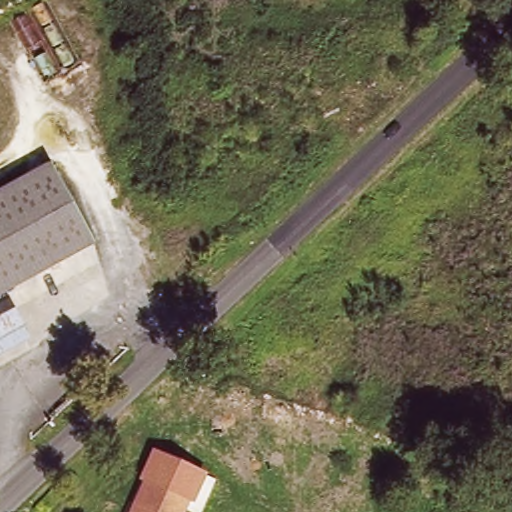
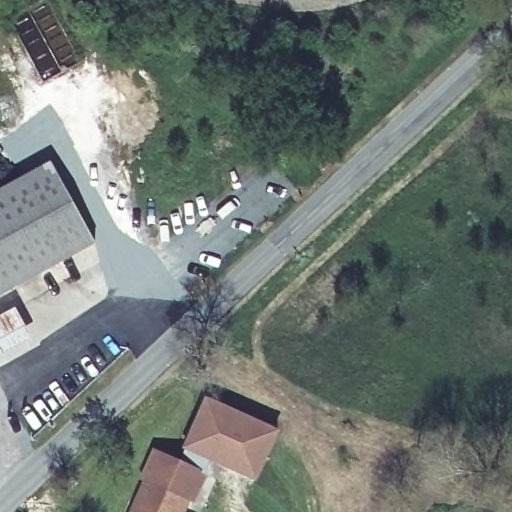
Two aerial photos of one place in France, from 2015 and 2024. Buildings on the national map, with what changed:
unchanged [(45,159),(88,238),(0,287),(0,184),(45,159)]
unchanged [(16,307),(33,339),(0,355),(0,316),(16,307)]
new [(256,482),(213,463),(208,473),(179,460),(206,396),(281,429),(256,482)]
unchanged [(187,493),(145,474),(155,449),(208,473),(195,503),(185,498),(187,493)]
unchanged [(179,512),(129,512),(145,474),(187,493),(179,512)]

